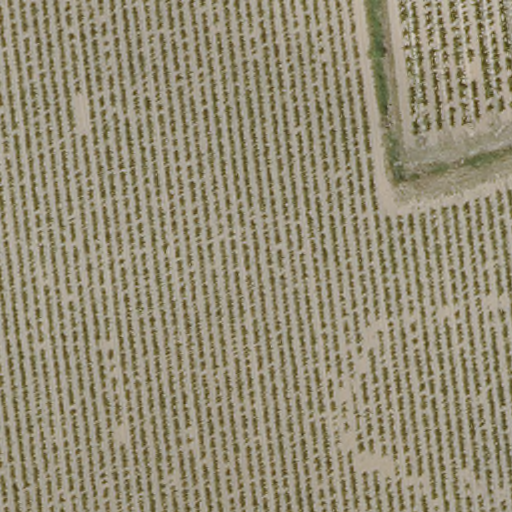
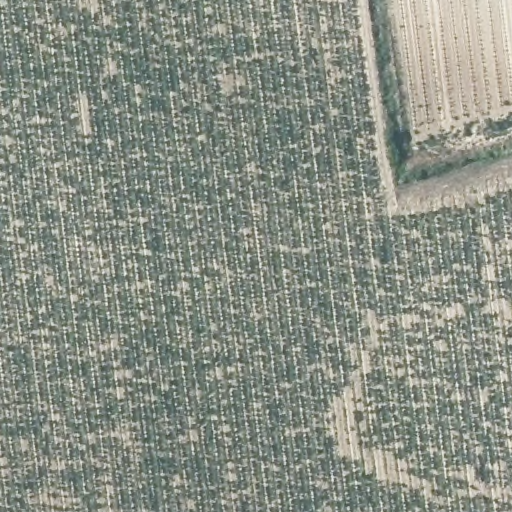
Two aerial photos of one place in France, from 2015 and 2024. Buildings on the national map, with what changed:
[]

